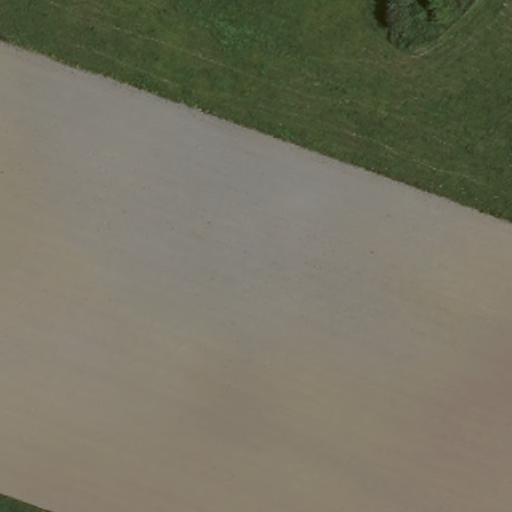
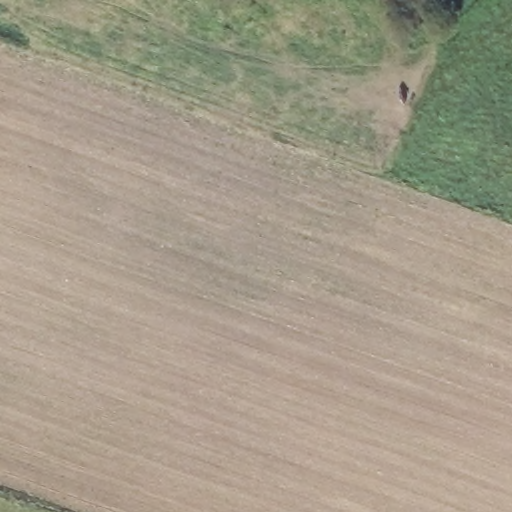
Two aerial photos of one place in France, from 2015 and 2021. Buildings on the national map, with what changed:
[]

